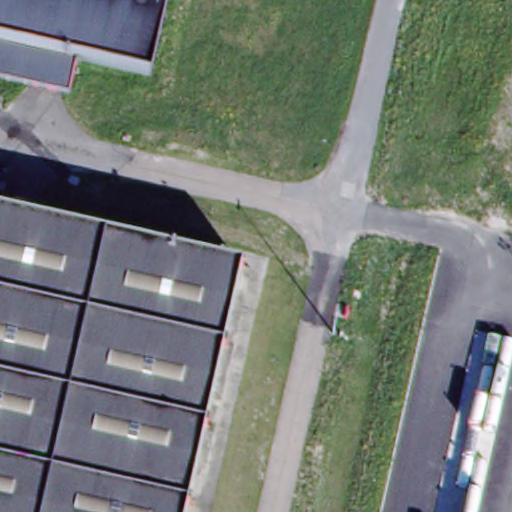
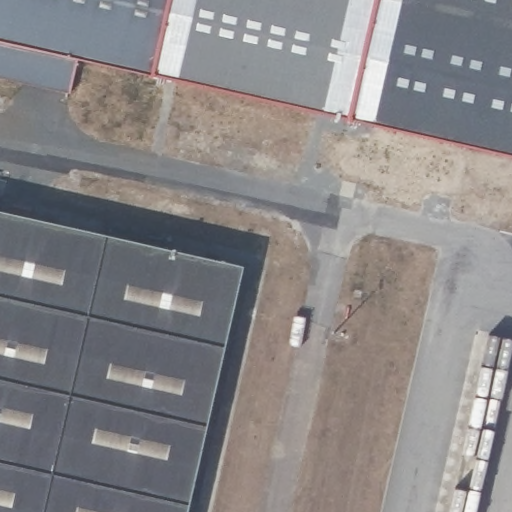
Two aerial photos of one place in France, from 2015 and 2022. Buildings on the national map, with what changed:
unchanged [(85,58),(0,38),(0,0),(177,0),(160,75),(85,58)]
new [(512,153),(160,75),(177,0),(512,0),(512,153)]
unchanged [(85,58),(78,92),(0,74),(0,38),(85,58)]
unchanged [(233,261),(176,512),(0,512),(0,208),(233,261)]

